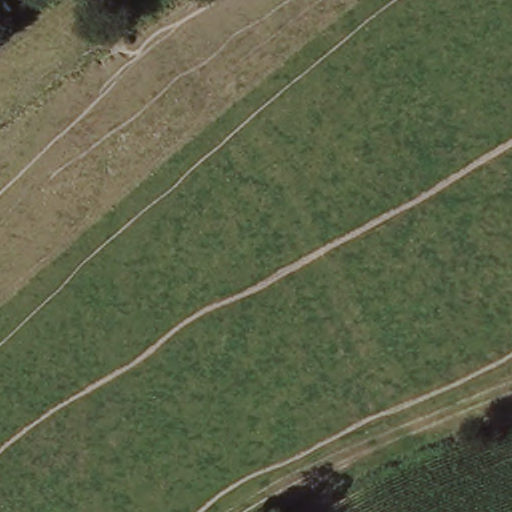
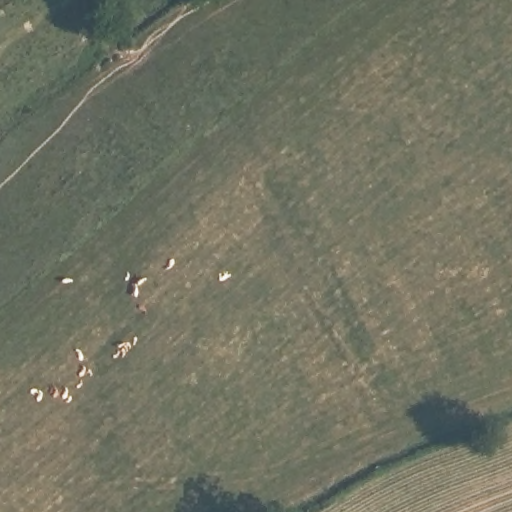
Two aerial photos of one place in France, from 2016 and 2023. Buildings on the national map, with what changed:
[]

